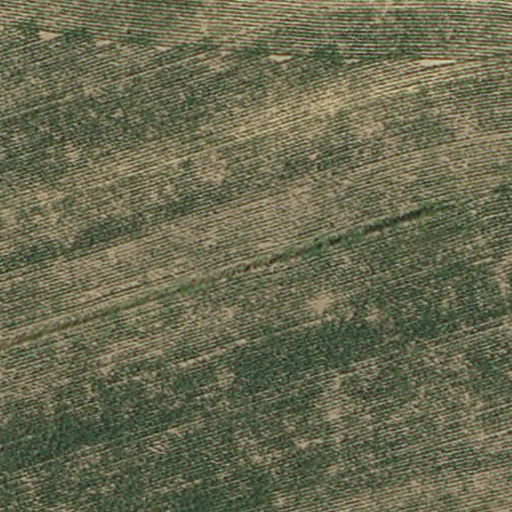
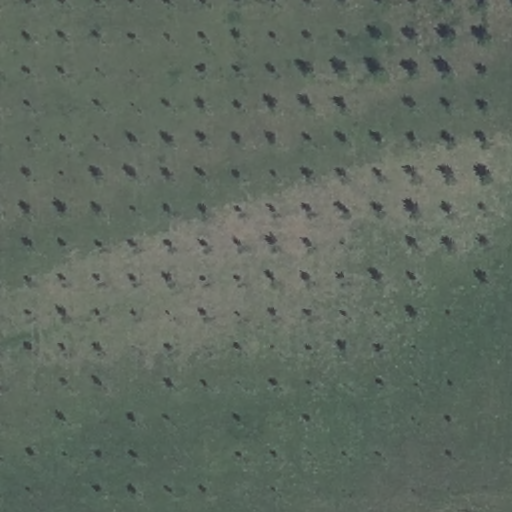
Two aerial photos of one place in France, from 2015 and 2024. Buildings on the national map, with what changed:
[]

